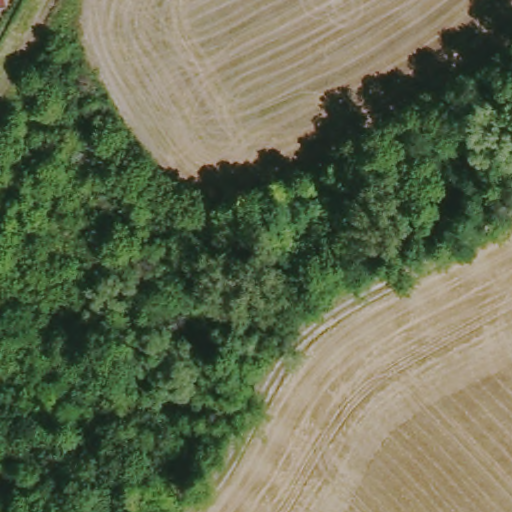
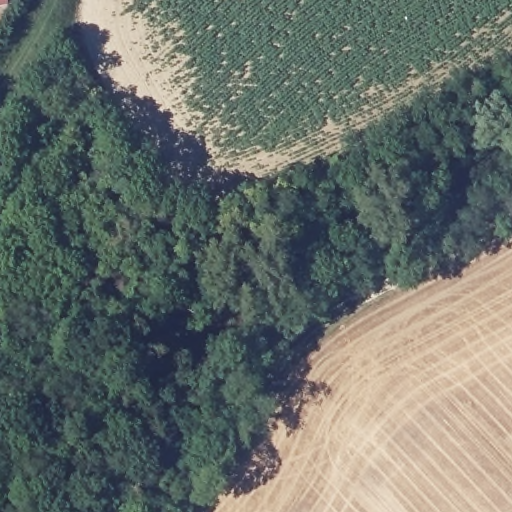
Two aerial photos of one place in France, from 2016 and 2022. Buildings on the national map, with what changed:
unchanged [(0,4),(0,0),(2,0),(2,4),(0,4)]

